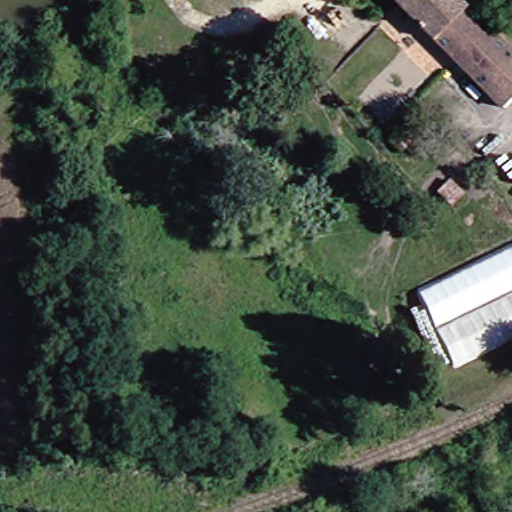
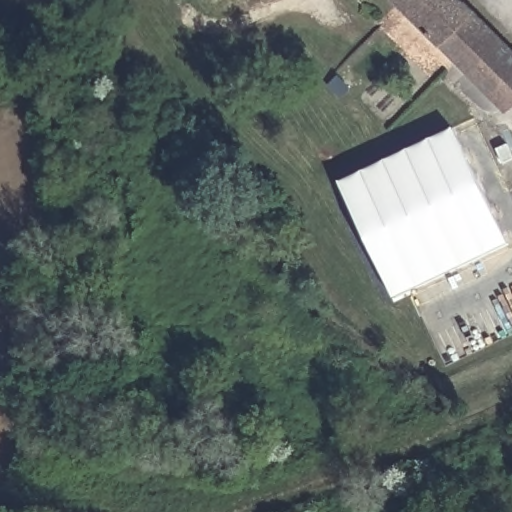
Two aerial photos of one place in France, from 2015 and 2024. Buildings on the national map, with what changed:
unchanged [(473,60),(414,0),(470,0),(512,42),(512,100),(483,71),(473,60)]
new [(452,129),(506,241),(393,295),(340,183),(452,129)]
demolished [(512,338),(453,366),(415,289),(512,244),(512,338)]

